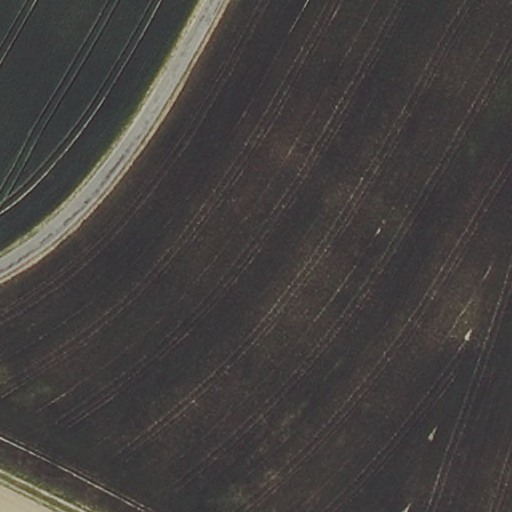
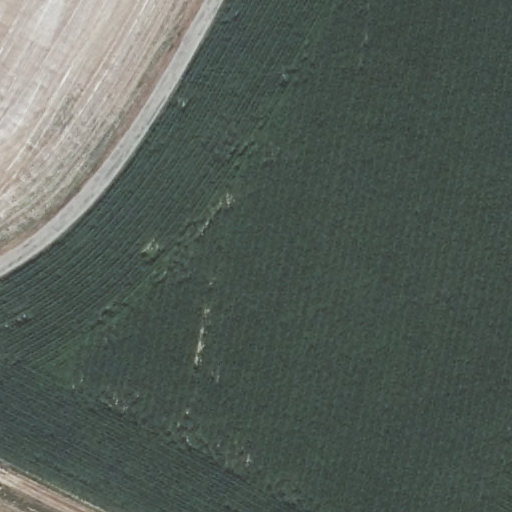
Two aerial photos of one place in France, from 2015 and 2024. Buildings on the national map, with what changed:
[]

